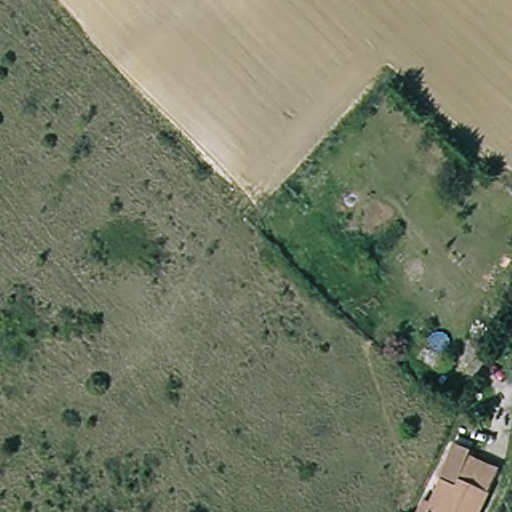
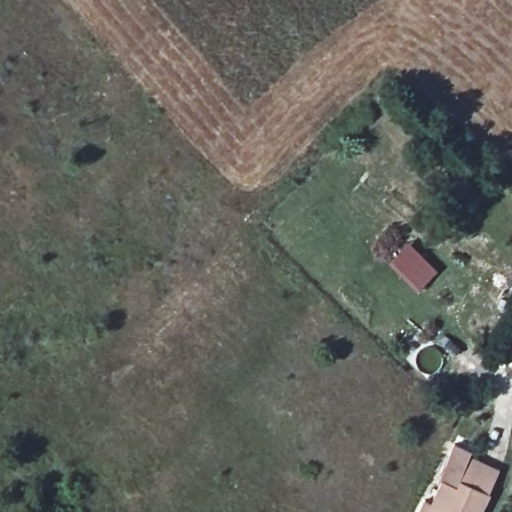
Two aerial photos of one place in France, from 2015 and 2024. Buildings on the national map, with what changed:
new [(437,270),(417,292),(387,263),(407,241),(437,270)]
unchanged [(442,470),(462,480),(467,470),(492,481),(480,507),(477,512),(422,512),(442,470)]

